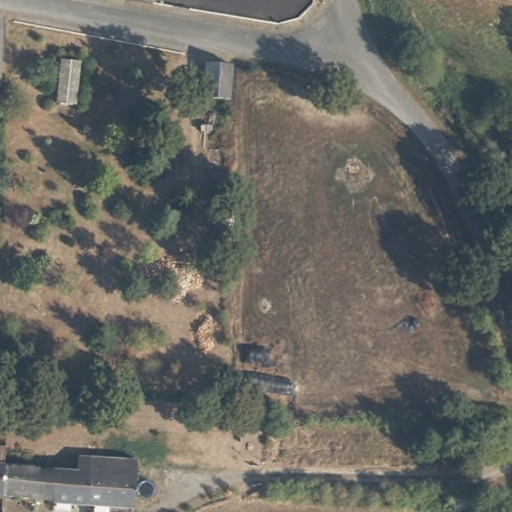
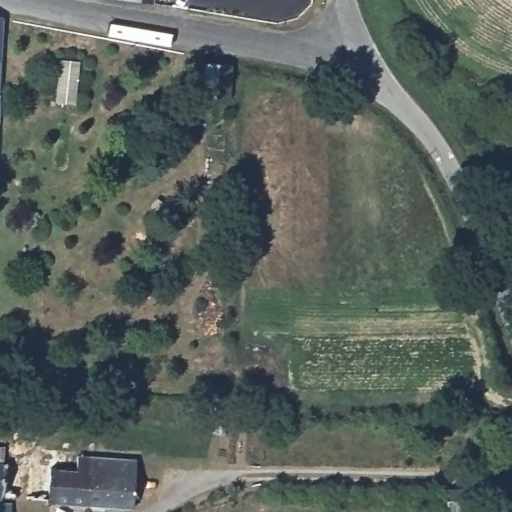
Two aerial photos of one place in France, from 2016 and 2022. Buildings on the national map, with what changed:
unchanged [(6,73),(0,73),(0,8),(7,8),(6,73)]
unchanged [(243,92),(217,90),(198,89),(198,56),(218,58),(243,61),(243,92)]
unchanged [(51,497),(52,488),(1,486),(3,454),(90,459),(90,447),(141,449),(139,502),(51,497)]
unchanged [(1,486),(0,486),(0,454),(3,454),(1,486)]

